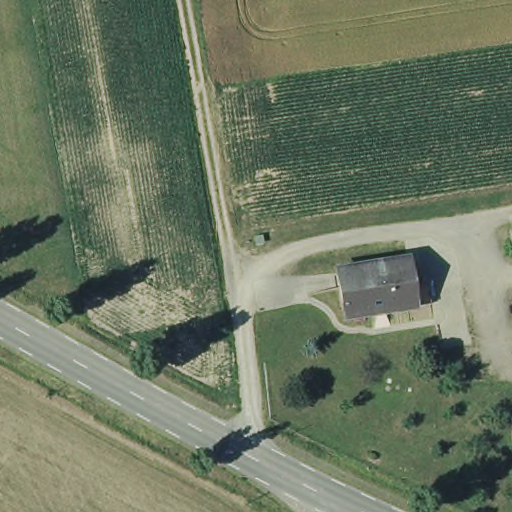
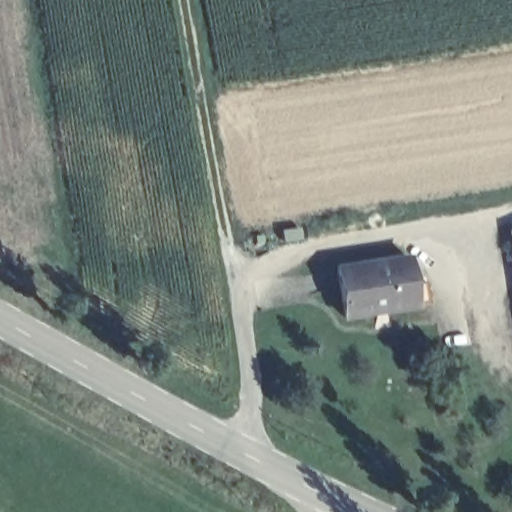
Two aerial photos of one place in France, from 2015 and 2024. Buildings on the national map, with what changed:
unchanged [(510,230),(512,230),(512,247),(510,230)]
unchanged [(430,305),(415,306),(344,318),(335,268),(406,257),(410,282),(426,280),(430,305)]

